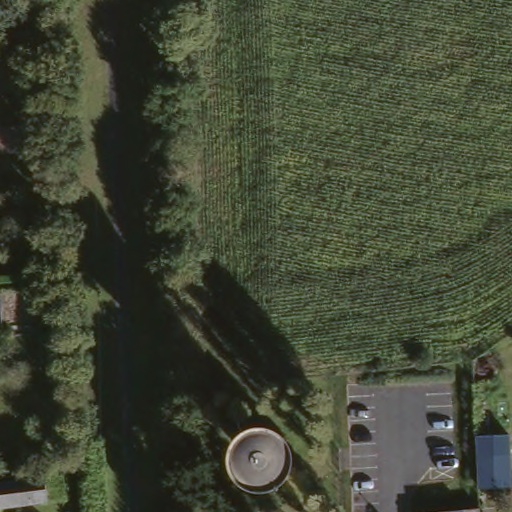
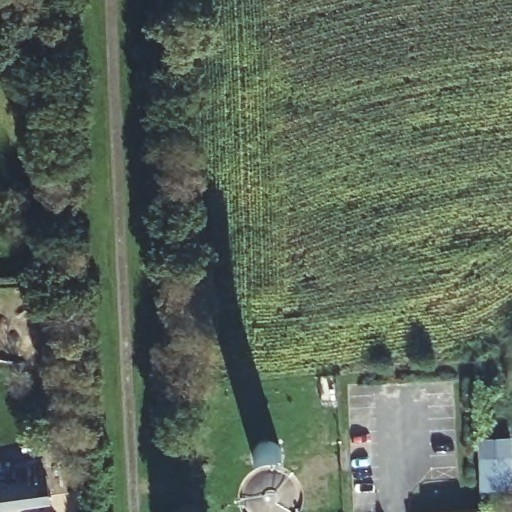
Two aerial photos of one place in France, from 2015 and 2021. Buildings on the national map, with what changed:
unchanged [(511,434),(512,445),(512,490),(478,491),(476,435),(511,434)]
unchanged [(0,483),(53,481),(53,506),(0,509),(0,483)]
unchanged [(478,512),(467,512),(478,511),(478,512)]

